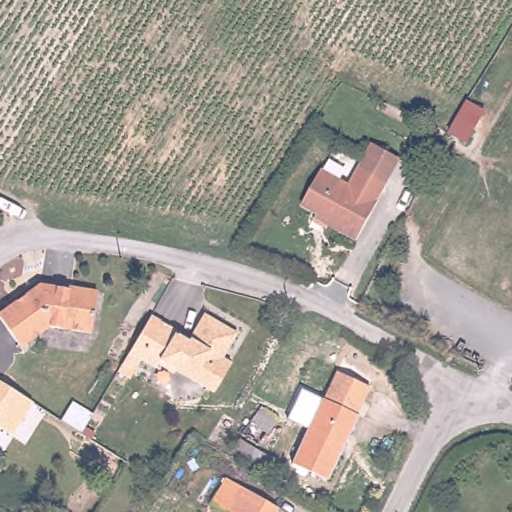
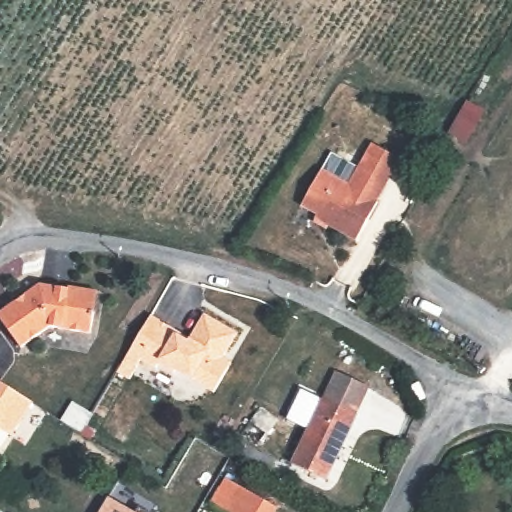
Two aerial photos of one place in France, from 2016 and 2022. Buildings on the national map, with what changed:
unchanged [(353,186),(363,167),(375,145),(400,159),(389,181),(380,200),(382,201),(361,241),(320,220),(321,215),(306,207),(325,171),(353,186)]
unchanged [(59,285),(58,291),(70,293),(71,285),(95,289),(92,306),(96,311),(92,332),(51,325),(20,345),(0,315),(0,311),(42,282),(59,285)]
unchanged [(157,313),(195,336),(210,311),(227,323),(195,375),(181,366),(179,370),(164,361),(161,365),(146,356),(135,375),(124,369),(135,350),(157,313)]
unchanged [(234,364),(219,388),(195,375),(227,323),(241,331),(227,355),(235,360),(234,364)]
unchanged [(325,398),(338,370),(371,386),(358,413),(359,414),(330,478),(295,462),(325,398)]
unchanged [(10,434),(0,428),(0,379),(32,400),(10,434)]
unchanged [(278,512),(230,512),(212,502),(227,475),(255,489),(282,505),(278,512)]
new [(111,496),(139,512),(102,512),(111,496)]
new [(142,505),(153,512),(139,512),(142,505)]

